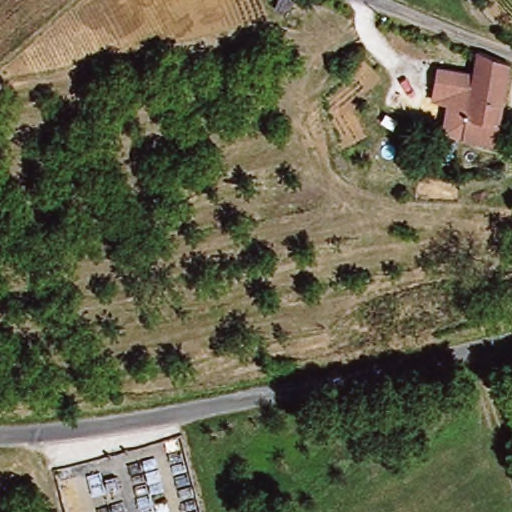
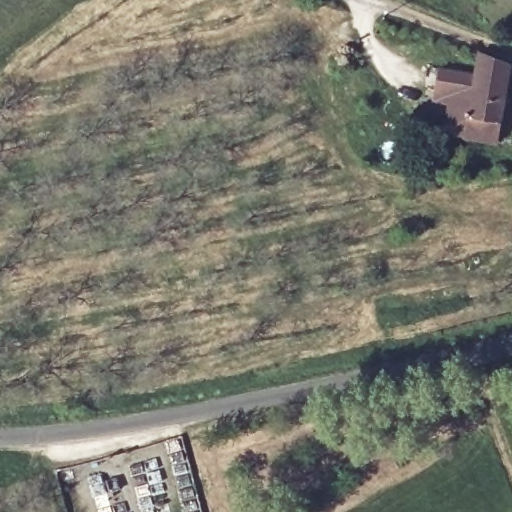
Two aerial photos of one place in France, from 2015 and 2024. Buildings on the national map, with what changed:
unchanged [(483,141),(453,136),(477,59),(510,68),(483,141)]

